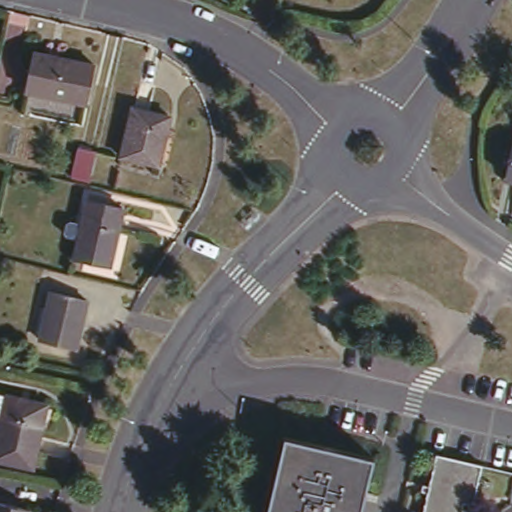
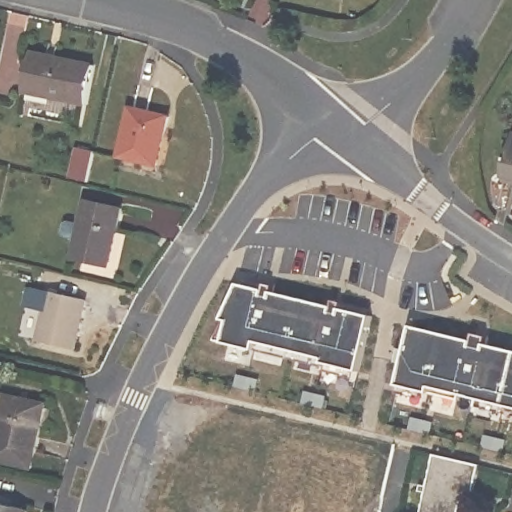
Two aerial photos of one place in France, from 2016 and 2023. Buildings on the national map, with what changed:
unchanged [(29,61),(91,74),(83,106),(22,92),(29,61)]
unchanged [(128,107),(165,115),(155,164),(118,155),(128,107)]
unchanged [(91,154),(84,184),(66,179),(73,149),(91,154)]
unchanged [(512,153),(512,177),(507,176),(512,153)]
unchanged [(86,198),(121,206),(107,264),(73,257),(86,198)]
new [(371,317),(356,380),(212,343),(238,285),(371,317)]
unchanged [(45,313),(24,308),(28,288),(49,292),(86,299),(75,345),(38,338),(45,313)]
new [(512,413),(396,387),(410,327),(512,352),(512,413)]
unchanged [(3,415),(0,414),(0,391),(8,393),(50,403),(37,452),(0,444),(0,426),(3,415)]
demolished [(363,458),(351,512),(258,512),(276,437),(363,458)]
unchanged [(470,503),(459,507),(458,512),(418,512),(432,452),(481,464),(470,503)]
unchanged [(27,508),(26,512),(0,512),(0,501),(27,508)]

